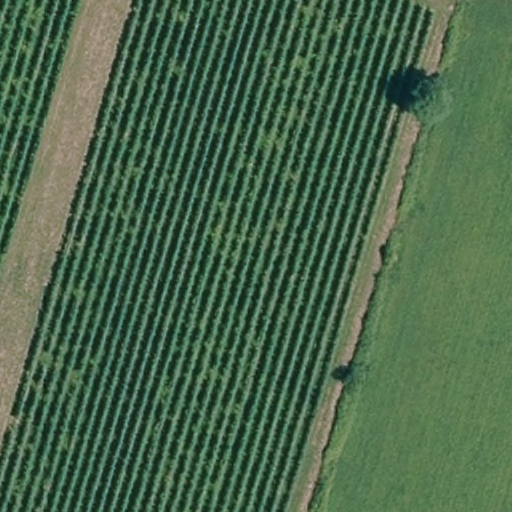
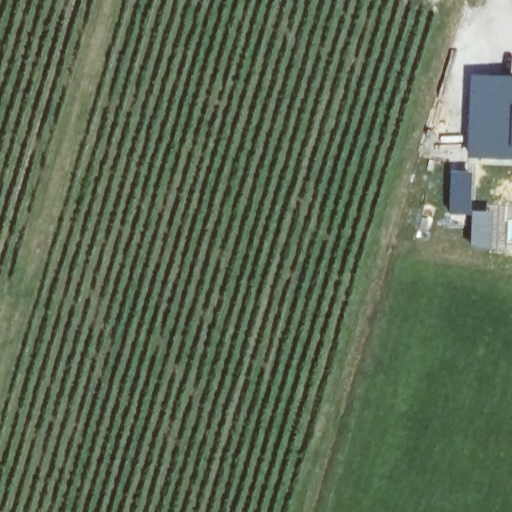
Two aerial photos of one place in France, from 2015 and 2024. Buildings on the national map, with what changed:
new [(512,160),(468,159),(470,75),(512,76),(512,160)]

